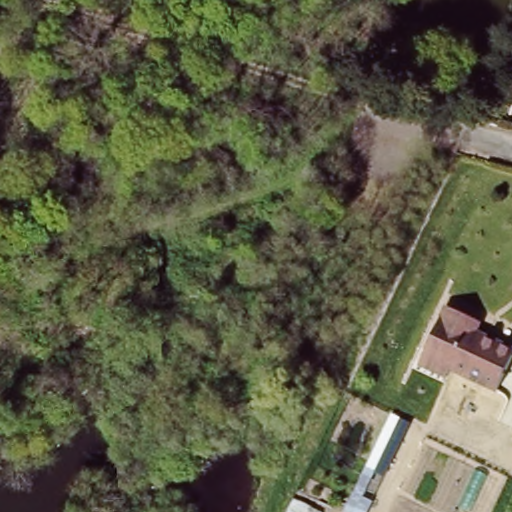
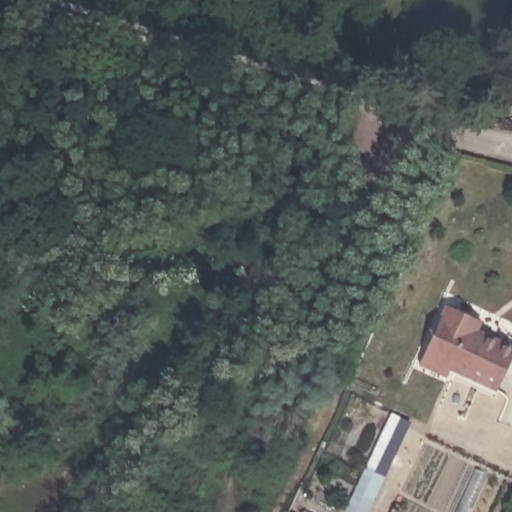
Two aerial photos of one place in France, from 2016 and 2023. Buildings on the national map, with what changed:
unchanged [(475,319),(480,322),(476,331),(512,349),(512,352),(511,354),(492,393),(448,370),(445,377),(416,363),(424,349),(446,304),(475,319)]

